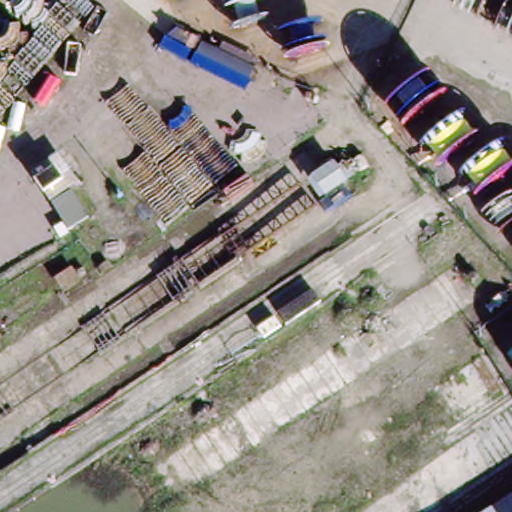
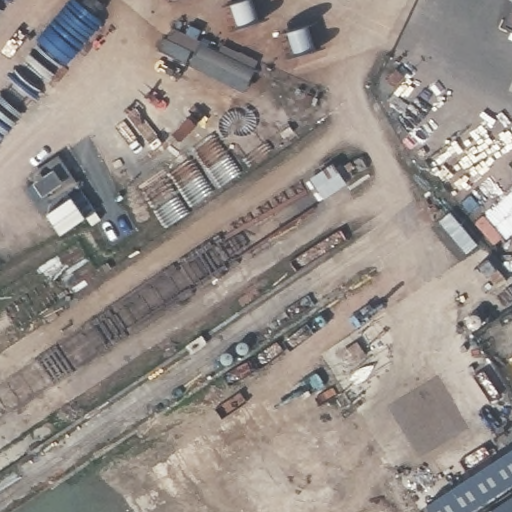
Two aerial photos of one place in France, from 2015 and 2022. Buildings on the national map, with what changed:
new [(510,19),(512,13),(512,20),(510,19)]
demolished [(172,82),(162,105),(137,94),(148,70),(172,82)]
new [(468,512),(435,512),(430,503),(512,449),(512,484),(468,512)]
unchanged [(499,512),(512,503),(512,512),(499,512)]

